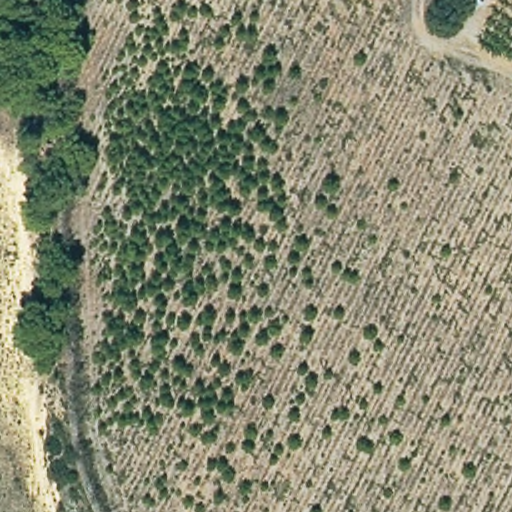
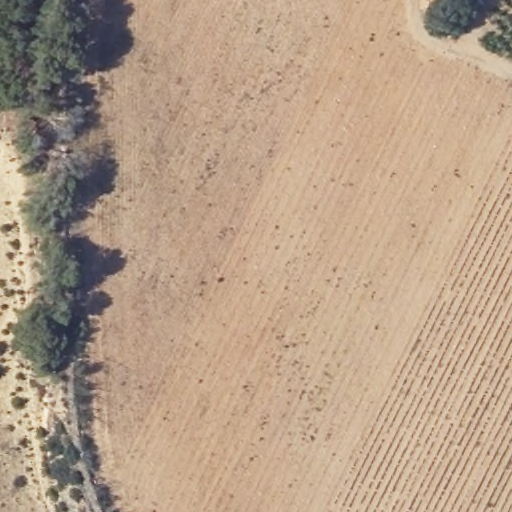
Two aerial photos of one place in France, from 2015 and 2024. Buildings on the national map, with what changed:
unchanged [(470,15),(449,0),(481,0),(470,15)]

